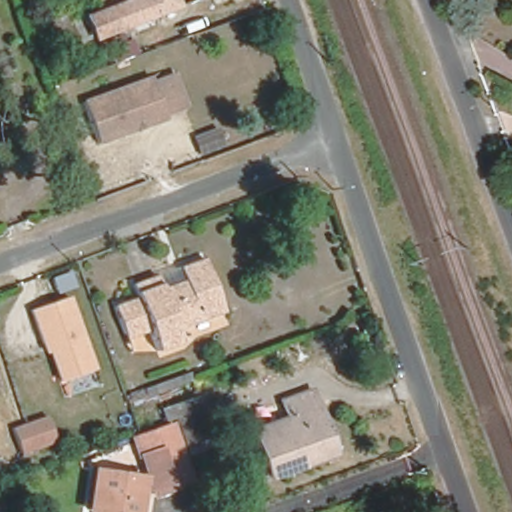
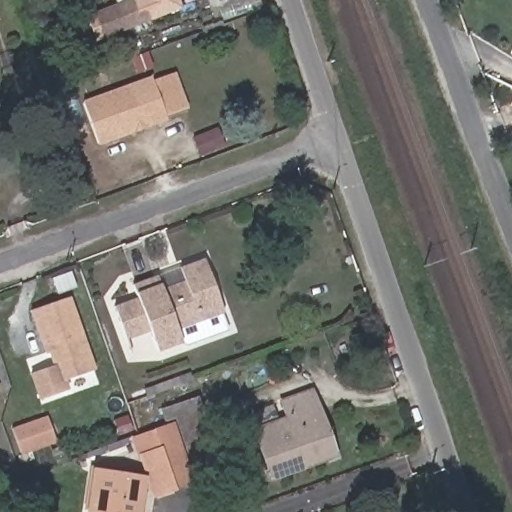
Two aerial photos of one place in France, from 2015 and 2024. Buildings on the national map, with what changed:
unchanged [(96,27),(89,8),(108,0),(170,0),(96,27)]
unchanged [(175,118),(106,141),(92,100),(161,77),(175,118)]
unchanged [(209,274),(218,298),(172,315),(179,335),(154,345),(146,326),(121,335),(109,301),(126,295),(128,299),(133,297),(126,278),(156,268),(161,281),(179,275),(174,261),(197,253),(201,251),(209,274)]
unchanged [(61,385),(33,311),(70,297),(95,372),(61,385)]
unchanged [(308,382),(332,447),(267,471),(249,424),(282,412),(276,393),(308,382)]
unchanged [(183,436),(173,408),(163,410),(159,398),(196,385),(201,398),(212,425),(183,436)]
unchanged [(140,447),(131,428),(171,414),(193,470),(173,477),(155,484),(140,447)]
unchanged [(43,415),(50,437),(14,450),(6,428),(43,415)]
unchanged [(85,509),(89,470),(138,475),(133,512),(94,512),(95,510),(85,509)]

